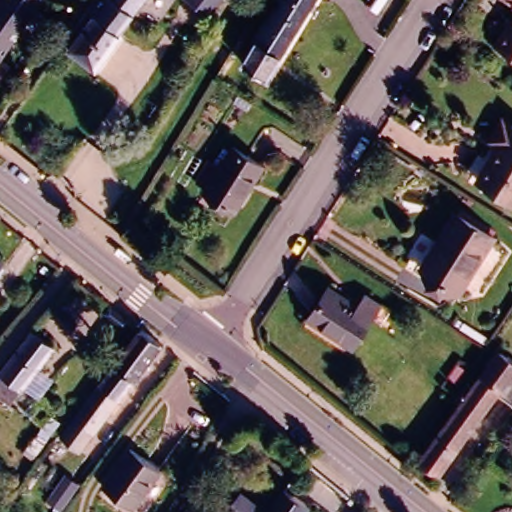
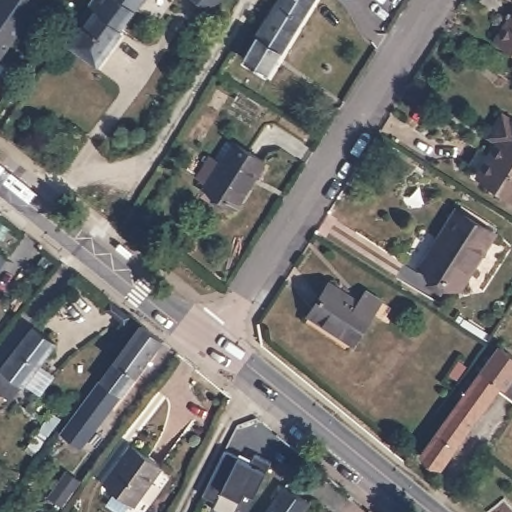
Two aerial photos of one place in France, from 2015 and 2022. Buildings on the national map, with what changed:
unchanged [(1,0),(40,0),(0,57),(0,2),(1,0)]
unchanged [(92,0),(141,0),(133,9),(132,9),(118,27),(121,30),(98,62),(72,44),(73,43),(65,38),(92,0)]
unchanged [(278,55),(278,57),(264,80),(238,64),(276,0),(312,0),(278,55)]
unchanged [(512,1),(511,0),(512,0),(512,1)]
unchanged [(512,18),(512,53),(492,39),(503,23),(507,16),(511,19),(512,18)]
unchanged [(208,70),(216,58),(209,54),(217,41),(231,49),(217,72),(216,75),(208,70)]
unchanged [(491,159),(498,148),(494,146),(491,144),(506,121),(509,123),(512,125),(512,203),(478,180),(491,159)]
unchanged [(259,163),(232,206),(203,187),(230,144),(259,163)]
unchanged [(457,208),(497,233),(461,290),(421,265),(457,208)]
unchanged [(325,285),(351,303),(359,290),(374,300),(348,343),(306,316),(325,285)]
unchanged [(4,368),(2,367),(35,324),(57,341),(14,397),(3,390),(0,394),(0,373),(4,368)]
unchanged [(120,396),(115,393),(104,408),(109,411),(81,448),(61,434),(139,326),(158,342),(120,396)]
unchanged [(439,470),(421,456),(461,400),(454,395),(467,378),(473,383),(499,347),(512,356),(512,402),(496,391),(439,470)]
unchanged [(128,447),(159,469),(131,507),(101,485),(128,447)]
new [(218,501),(203,494),(226,451),(240,457),(268,471),(254,495),(246,491),(241,500),(236,512),(222,512),(213,508),(218,501)]
unchanged [(311,502),(303,512),(267,512),(286,485),(311,502)]
demolished [(244,489),(268,506),(263,512),(249,512),(235,502),(244,489)]

